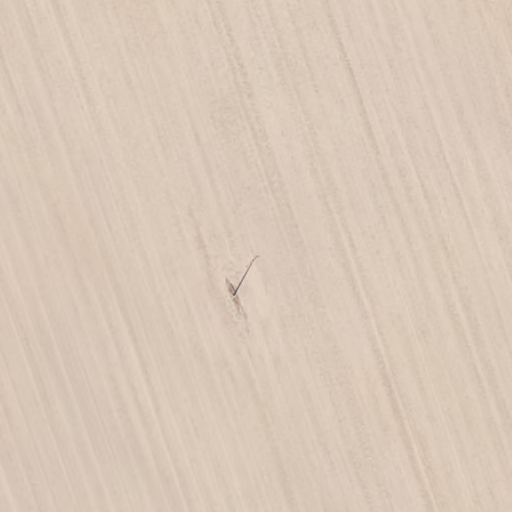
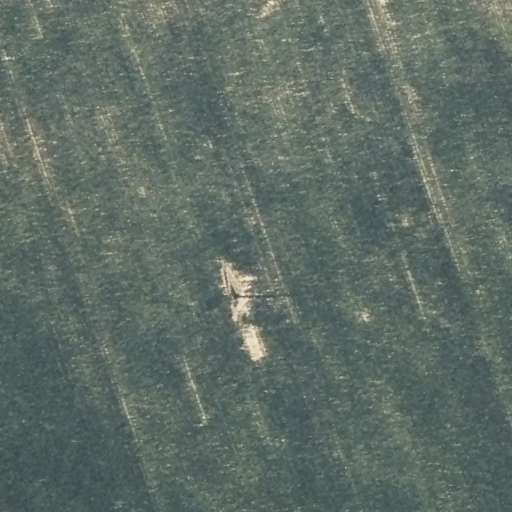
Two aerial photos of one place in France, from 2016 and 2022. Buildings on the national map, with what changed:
[]

